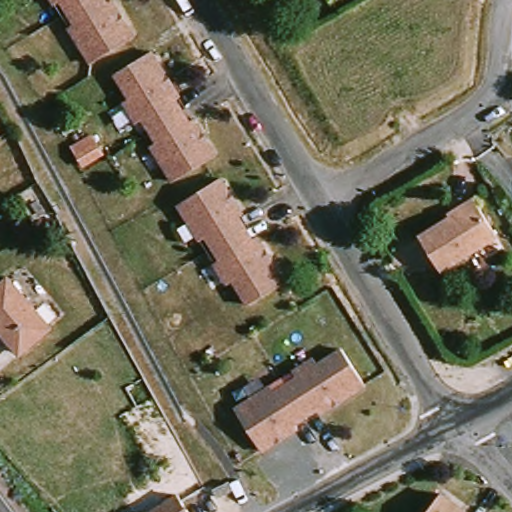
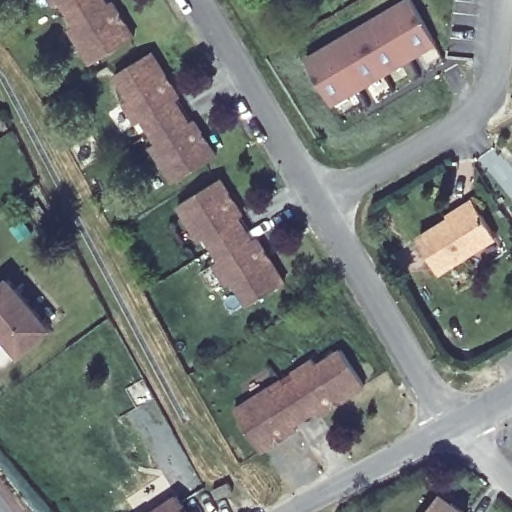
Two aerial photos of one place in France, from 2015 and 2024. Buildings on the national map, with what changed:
unchanged [(111,1),(120,15),(116,17),(120,24),(124,22),(133,37),(91,63),(69,28),(75,24),(61,1),(55,5),(52,0),(105,0),(107,3),(111,1)]
new [(401,0),(410,0),(436,46),(333,106),(304,55),(401,0)]
unchanged [(166,76),(162,78),(163,80),(129,98),(115,74),(151,51),(166,76)]
unchanged [(166,85),(171,83),(179,96),(175,99),(189,122),(193,119),(202,133),(198,136),(202,143),(206,140),(216,155),(173,181),(151,145),(154,143),(141,120),(136,123),(123,101),(128,98),(129,98),(163,80),(166,85)]
unchanged [(230,203),(190,224),(178,204),(221,178),(230,193),(226,196),(230,203)]
unchanged [(419,236),(449,217),(448,214),(472,199),(496,236),(441,271),(419,236)]
unchanged [(231,202),(234,200),(243,214),(239,216),(253,239),(257,237),(265,250),(261,253),(266,260),(270,258),(285,282),(248,305),(233,281),(227,284),(214,263),(218,261),(204,238),(201,240),(190,224),(230,203),(231,202)]
unchanged [(0,329),(0,286),(8,279),(49,328),(20,352),(0,329)]
unchanged [(365,384),(341,400),(338,396),(331,401),(334,405),(320,414),(317,410),(295,424),(298,428),(284,437),(282,433),(275,437),(277,442),(262,451),(235,409),(271,386),(273,390),(296,375),(293,371),(314,358),(317,364),(341,348),(365,384)]
unchanged [(228,482),(232,491),(217,499),(212,489),(228,482)]
unchanged [(438,494),(463,512),(425,512),(438,494)]
unchanged [(173,499),(181,512),(153,512),(173,499)]

